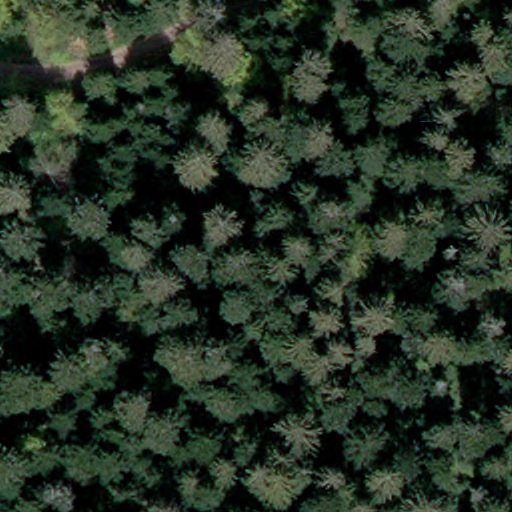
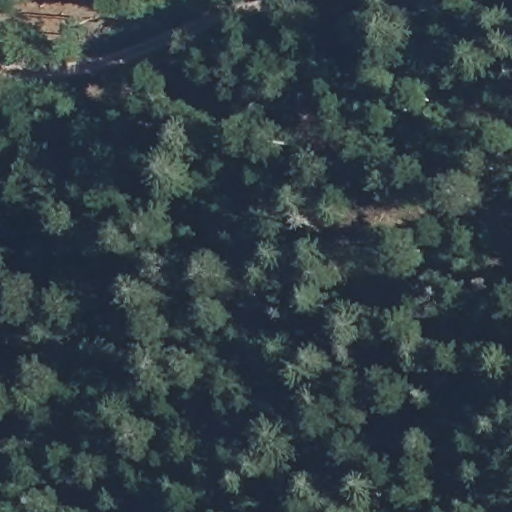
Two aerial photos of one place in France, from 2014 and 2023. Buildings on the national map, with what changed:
[]

